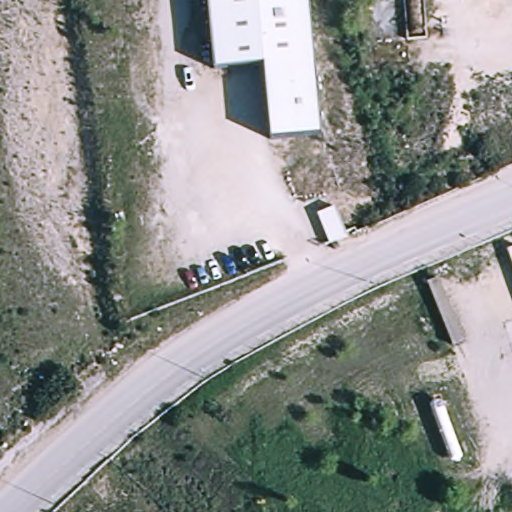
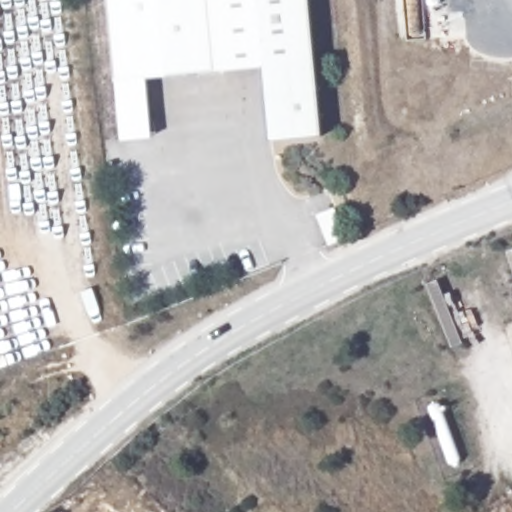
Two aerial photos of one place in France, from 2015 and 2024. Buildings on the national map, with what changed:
new [(217,70),(145,77),(152,139),(123,142),(117,81),(110,0),(210,0),(217,70)]
unchanged [(325,135),(272,140),(265,65),(217,70),(210,0),(311,0),(325,135)]
unchanged [(428,32),(407,34),(403,0),(425,0),(428,32)]

